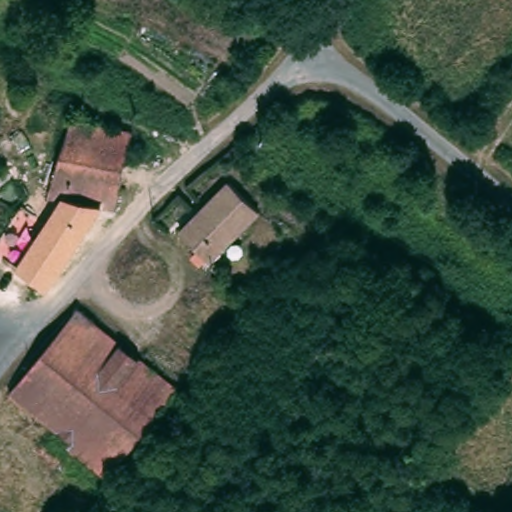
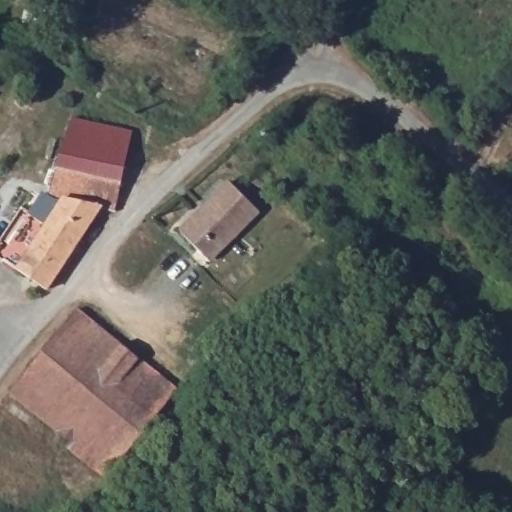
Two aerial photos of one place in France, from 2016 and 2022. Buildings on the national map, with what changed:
unchanged [(132,129),(122,178),(60,162),(69,117),(132,129)]
unchanged [(0,257),(0,243),(24,206),(50,223),(66,199),(54,194),(60,162),(122,178),(116,206),(102,204),(48,289),(0,257)]
unchanged [(209,262),(179,233),(223,181),(255,208),(209,262)]
unchanged [(101,482),(62,447),(68,440),(14,387),(88,307),(182,397),(101,482)]

